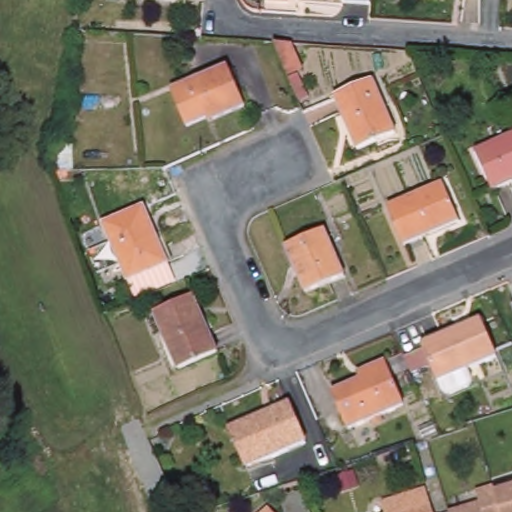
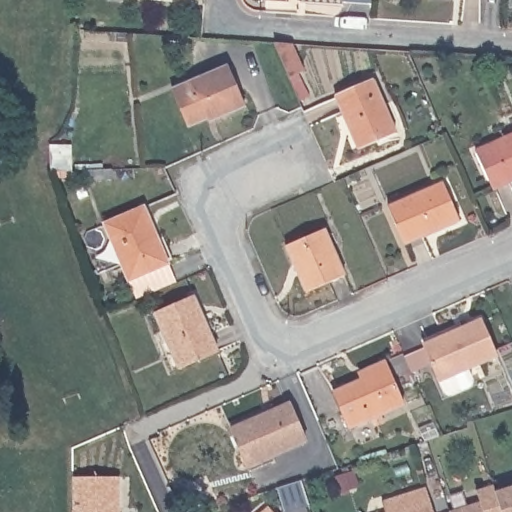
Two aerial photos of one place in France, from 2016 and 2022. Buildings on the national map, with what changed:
new [(347,0),(376,0),(376,4),(347,3),(347,0)]
unchanged [(305,73),(291,79),(275,42),(293,44),(305,73)]
unchanged [(248,107),(219,120),(216,116),(192,127),(176,91),(230,67),(248,107)]
unchanged [(396,134),(357,150),(335,98),(374,82),(396,134)]
unchanged [(476,154),(512,138),(512,183),(493,192),(476,154)]
unchanged [(403,246),(387,209),(443,185),(459,223),(403,246)]
unchanged [(167,264),(128,280),(104,226),(144,209),(167,264)]
unchanged [(341,276),(307,289),(287,243),(322,229),(341,276)]
unchanged [(218,353),(179,369),(155,315),(193,298),(218,353)]
unchanged [(425,345),(424,342),(481,317),(495,353),(467,365),(471,376),(444,388),(432,359),(411,368),(407,358),(405,353),(425,345)]
unchanged [(403,402),(345,427),(332,395),(365,381),(363,376),(388,366),(403,402)]
unchanged [(247,467),(231,430),(289,405),(305,443),(247,467)]
new [(118,478),(118,512),(71,512),(71,478),(118,478)]
unchanged [(484,500),(480,489),(498,483),(500,490),(512,486),(512,512),(453,512),(452,510),(484,500)]
unchanged [(429,491),(433,503),(435,511),(436,512),(387,512),(385,504),(429,491)]
unchanged [(272,512),(262,512),(268,507),(272,512)]

